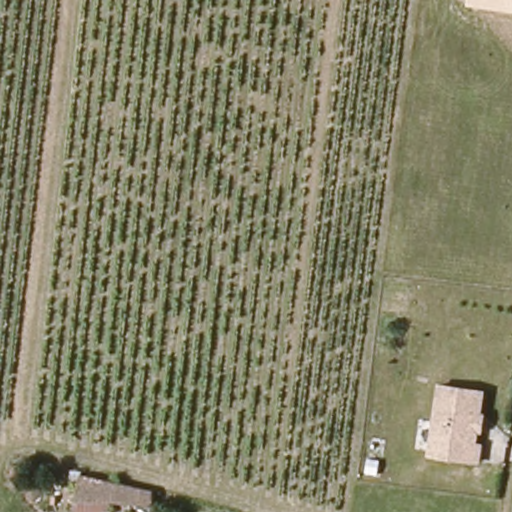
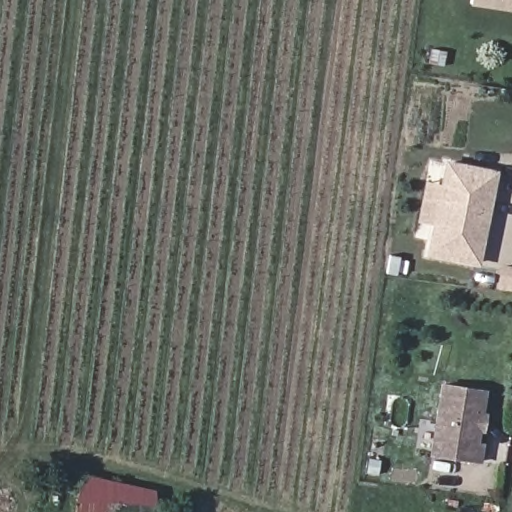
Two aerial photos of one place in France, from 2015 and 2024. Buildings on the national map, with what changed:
unchanged [(469,5),(470,0),(512,0),(512,11),(469,5)]
new [(420,223),(427,186),(443,189),(447,166),(497,175),(480,264),(430,256),(436,226),(420,223)]
unchanged [(481,410),(486,411),(482,432),(478,432),(476,441),(483,442),(479,463),(426,455),(438,380),(485,387),(481,410)]
unchanged [(74,504),(81,473),(174,499),(170,512),(71,512),(74,504)]

